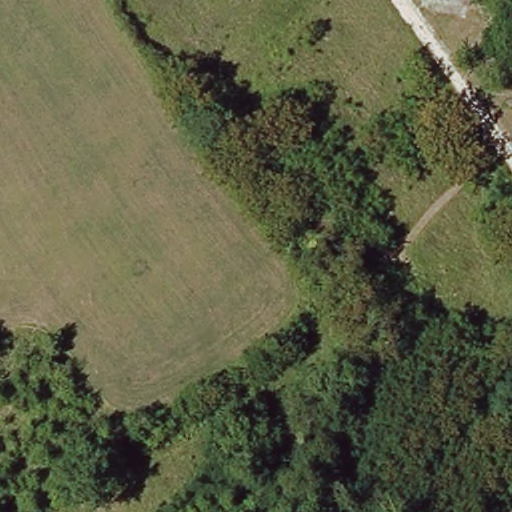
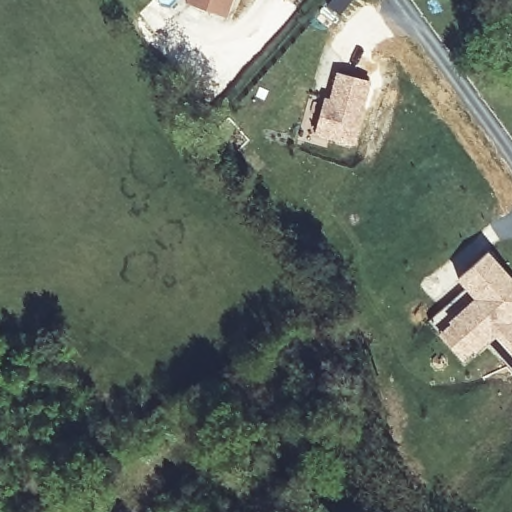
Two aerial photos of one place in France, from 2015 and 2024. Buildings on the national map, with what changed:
new [(185,4),(187,0),(234,0),(227,20),(185,4)]
new [(324,97),(330,99),(338,71),(370,80),(351,142),(314,131),(324,97)]
new [(484,341),(473,351),(472,349),(461,359),(438,332),(427,319),(465,287),(457,277),(486,253),(512,282),(512,317),(507,322),(512,327),(512,371),(506,365),(484,341)]

